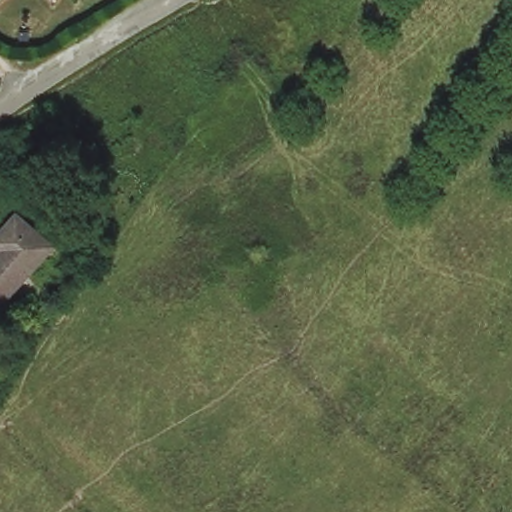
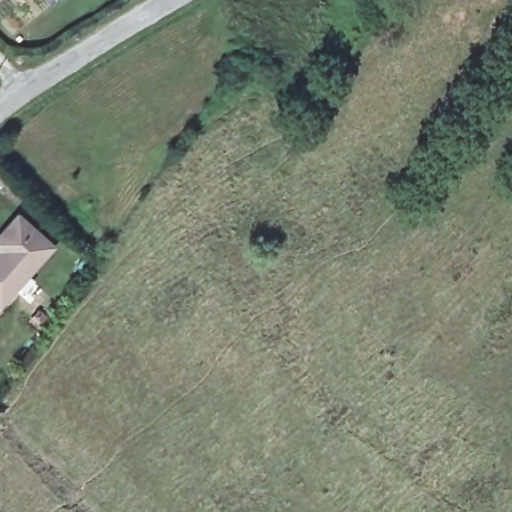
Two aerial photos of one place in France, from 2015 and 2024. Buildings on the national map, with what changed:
unchanged [(52,242),(2,304),(0,302),(0,254),(2,251),(0,249),(0,235),(18,213),(52,242)]

